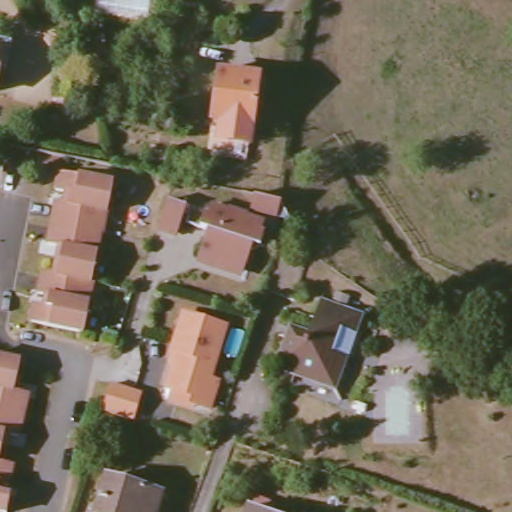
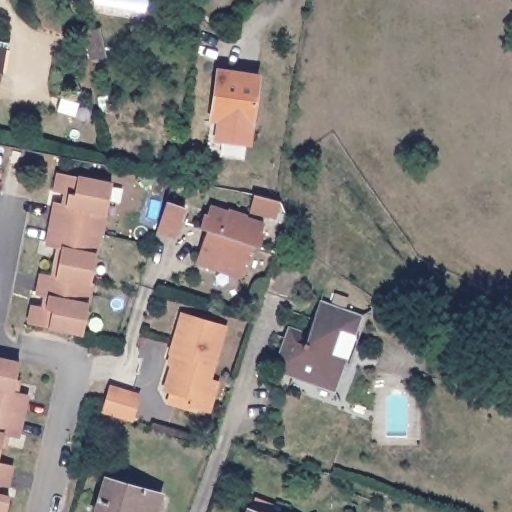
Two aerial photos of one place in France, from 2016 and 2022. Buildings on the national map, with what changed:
unchanged [(4,44),(0,62),(0,44),(4,44)]
unchanged [(251,132),(210,123),(220,62),(262,70),(251,132)]
unchanged [(48,222),(52,203),(64,205),(66,193),(54,190),(56,173),(110,182),(104,221),(102,221),(99,232),(48,222)]
unchanged [(287,221),(279,219),(254,211),(255,193),(275,197),(280,198),(287,219),(287,221)]
unchanged [(167,197),(187,203),(178,233),(159,227),(167,197)]
unchanged [(210,229),(202,226),(207,213),(210,214),(214,205),(231,212),(232,209),(250,216),(249,219),(267,225),(264,234),(267,235),(262,248),(255,245),(247,268),(232,263),(231,268),(200,257),(210,229)]
unchanged [(95,244),(100,245),(93,281),(90,281),(54,274),(57,252),(44,248),(48,222),(99,232),(95,244)]
unchanged [(310,256),(297,301),(267,292),(280,247),(310,256)]
unchanged [(90,281),(88,295),(92,296),(85,333),(30,323),(33,309),(47,311),(49,298),(37,295),(40,273),(54,275),(54,274),(90,281)]
unchanged [(271,370),(287,325),(304,330),(315,298),(357,312),(350,330),(355,331),(345,361),(340,360),(330,391),(271,370)]
unchanged [(230,323),(215,377),(223,379),(216,406),(199,401),(201,394),(172,386),(182,350),(177,349),(187,312),(230,323)]
unchanged [(0,406),(0,356),(21,360),(16,387),(30,391),(26,411),(0,406)]
unchanged [(109,389),(138,397),(130,425),(102,416),(109,389)]
unchanged [(20,436),(6,433),(0,460),(0,406),(26,411),(20,436)]
unchanged [(0,460),(15,463),(10,484),(0,481),(0,460)]
unchanged [(153,512),(92,512),(101,476),(159,491),(153,512)]
unchanged [(11,494),(7,512),(0,511),(0,491),(11,494)]

